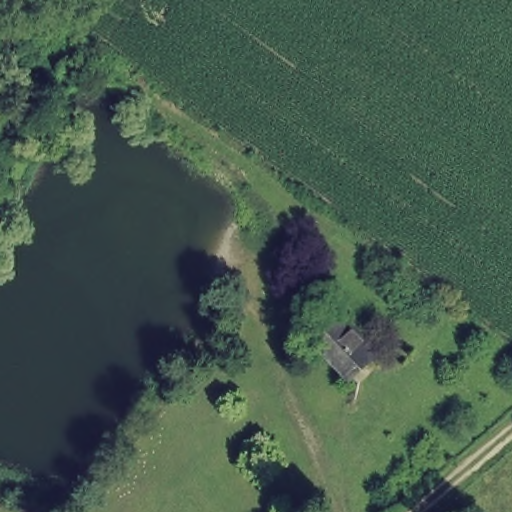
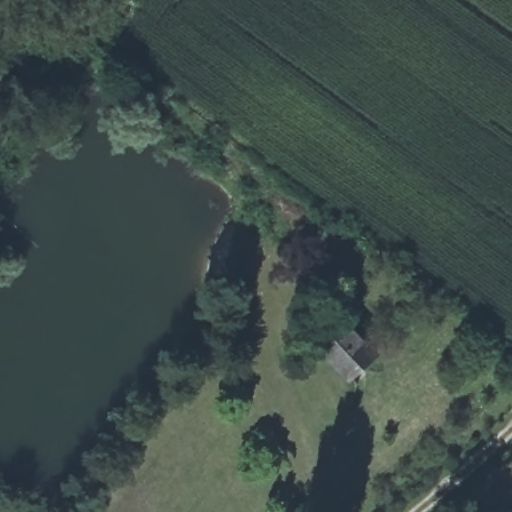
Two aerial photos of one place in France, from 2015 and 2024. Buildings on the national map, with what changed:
unchanged [(310,342),(343,314),(377,347),(346,380),(310,342)]

